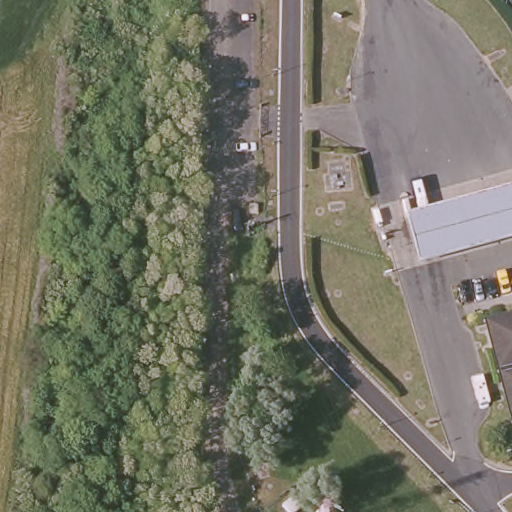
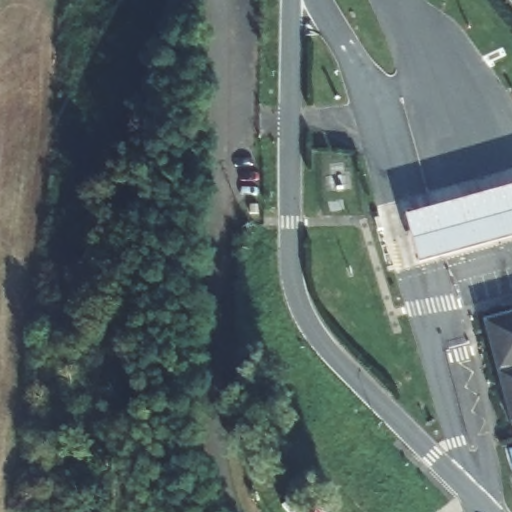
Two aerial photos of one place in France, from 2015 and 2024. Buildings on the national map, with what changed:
unchanged [(512,240),(417,265),(404,217),(512,188),(512,240)]
unchanged [(512,395),(494,326),(512,321),(512,395)]

